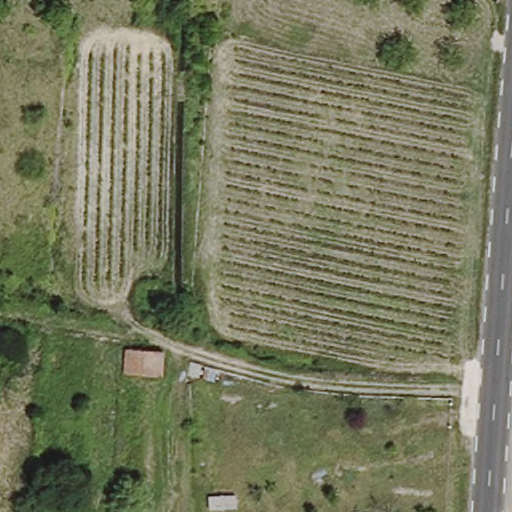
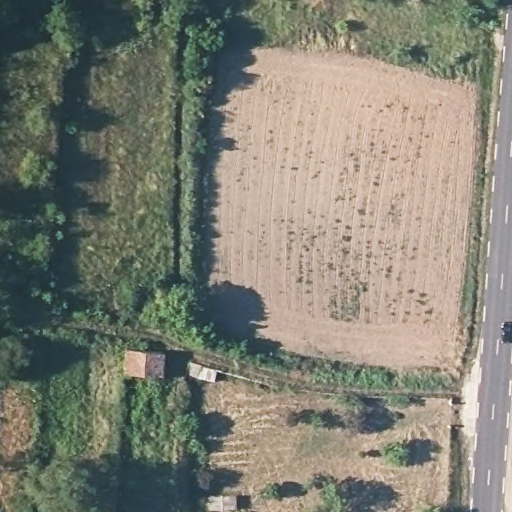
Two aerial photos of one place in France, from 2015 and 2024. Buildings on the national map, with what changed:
unchanged [(150,340),(167,345),(167,369),(125,367),(127,335),(134,335),(150,340)]
unchanged [(215,386),(200,383),(200,361),(217,366),(215,386)]

